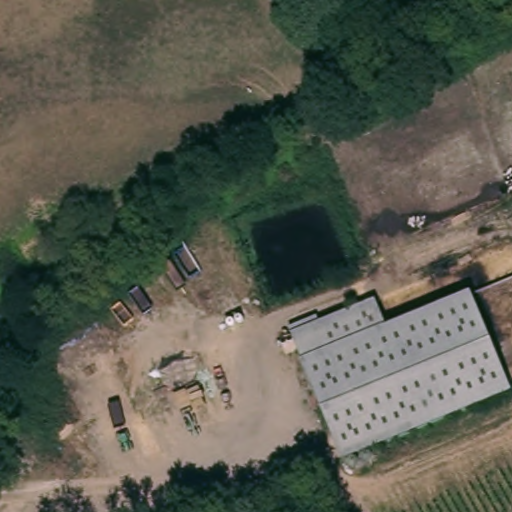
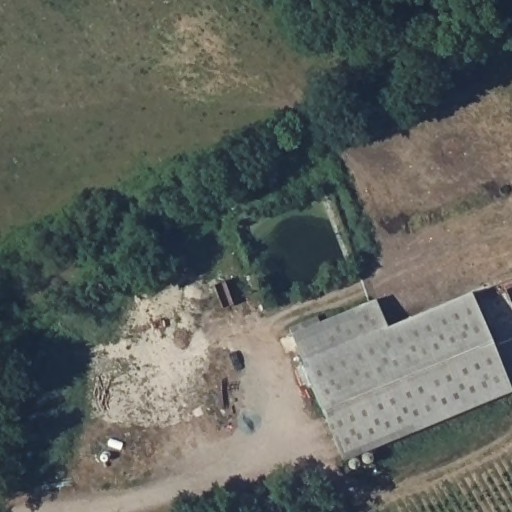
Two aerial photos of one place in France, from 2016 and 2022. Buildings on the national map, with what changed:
unchanged [(389,327),(471,291),(503,363),(510,380),(512,384),(512,389),(348,460),(331,420),(294,335),(377,300),(389,327)]

